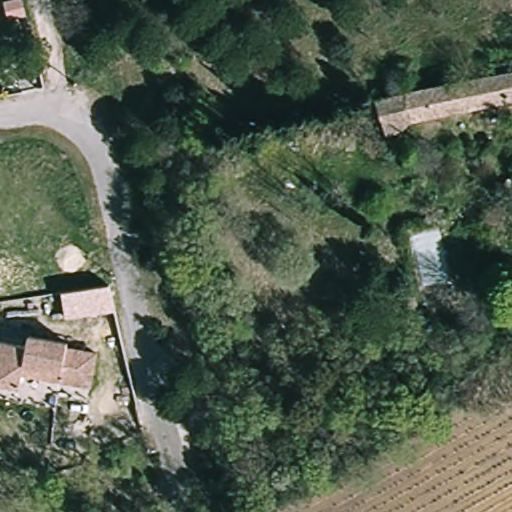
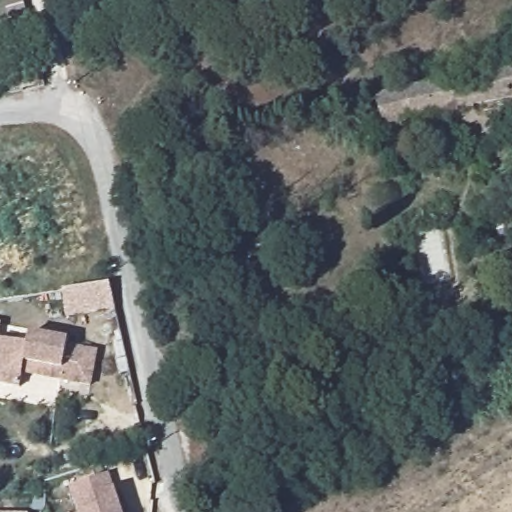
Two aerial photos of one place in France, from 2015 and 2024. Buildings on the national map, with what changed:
unchanged [(373,93),(446,80),(442,71),(457,68),(458,75),(495,66),(493,57),(505,56),(507,66),(512,65),(512,94),(415,112),(398,120),(380,125),(373,93)]
unchanged [(65,317),(61,294),(108,286),(112,310),(65,317)]
unchanged [(22,331),(92,343),(87,381),(18,368),(15,382),(0,379),(0,334),(22,337),(22,331)]
new [(110,480),(121,512),(79,512),(72,492),(110,480)]

